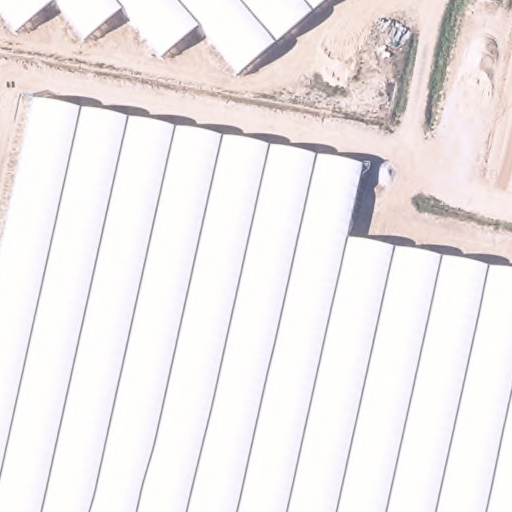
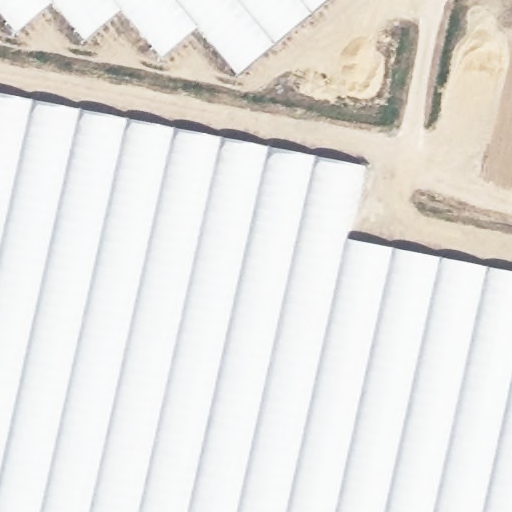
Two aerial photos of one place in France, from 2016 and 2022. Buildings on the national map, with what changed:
unchanged [(0,14),(0,0),(55,0),(14,35),(0,14)]
unchanged [(199,26),(163,59),(124,9),(82,41),(55,0),(331,0),(241,76),(199,26)]
new [(0,252),(0,94),(33,101),(0,252)]
unchanged [(363,166),(347,241),(512,274),(512,512),(0,512),(0,252),(33,101),(363,166)]

